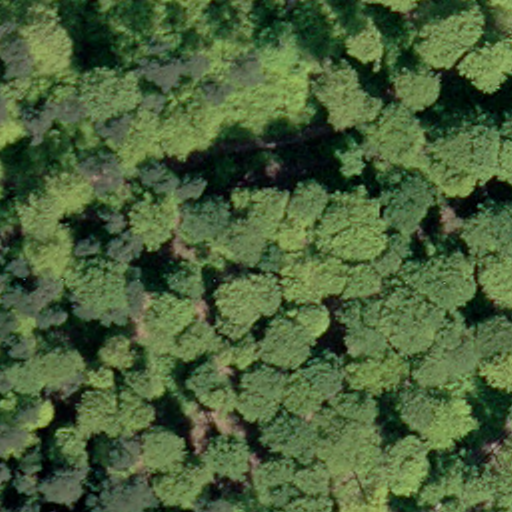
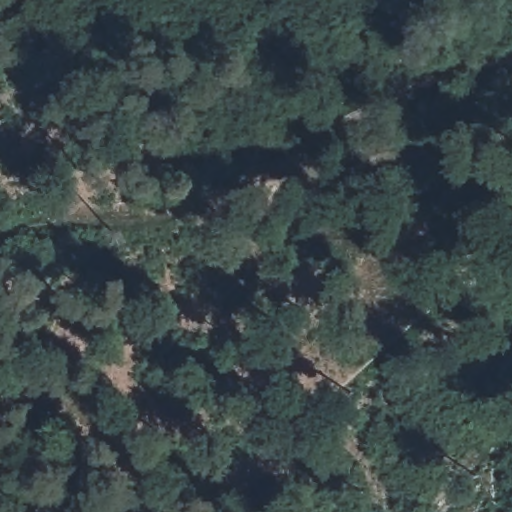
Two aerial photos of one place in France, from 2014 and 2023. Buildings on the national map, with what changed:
[]

